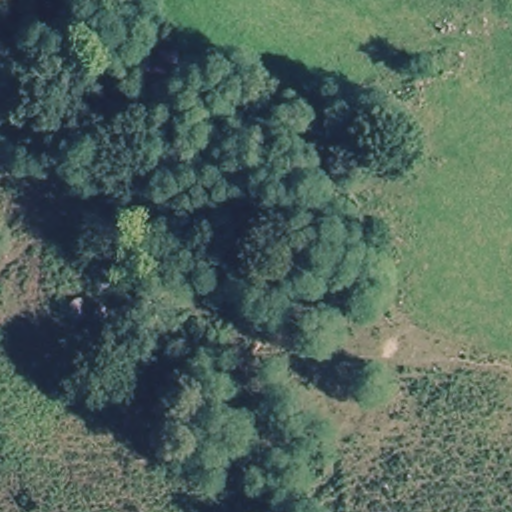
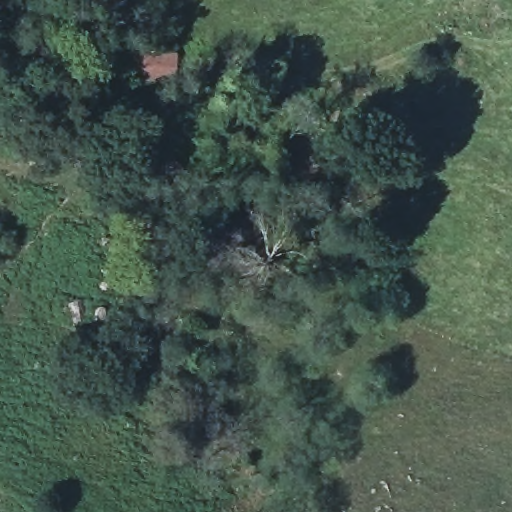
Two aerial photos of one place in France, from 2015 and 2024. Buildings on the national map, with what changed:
unchanged [(178,86),(127,84),(130,57),(179,56),(178,86)]

